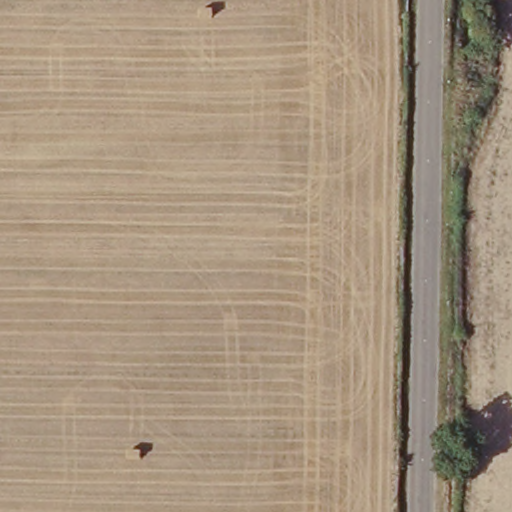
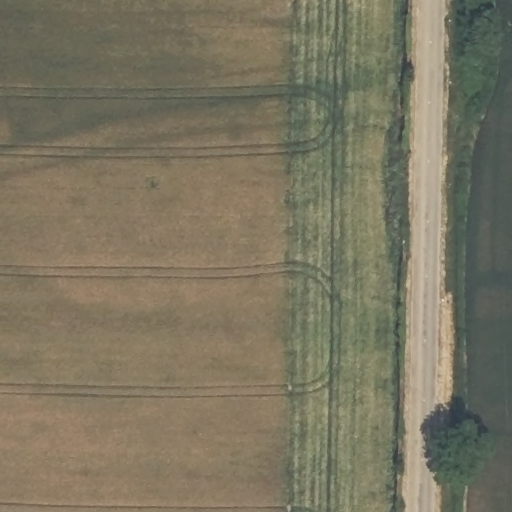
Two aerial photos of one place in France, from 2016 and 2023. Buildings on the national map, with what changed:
unchanged [(466,2),(467,23),(459,23),(454,23),(456,1),(459,1),(466,2)]

